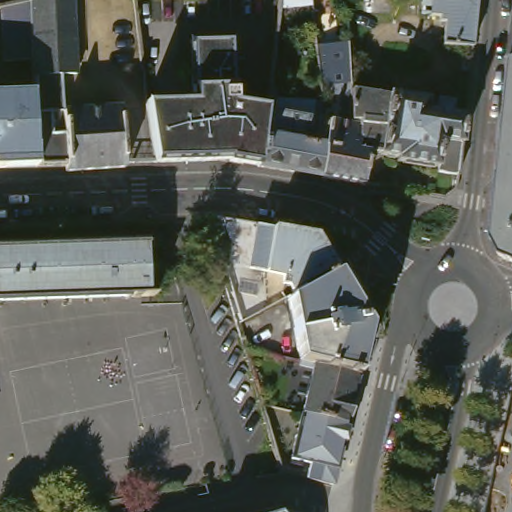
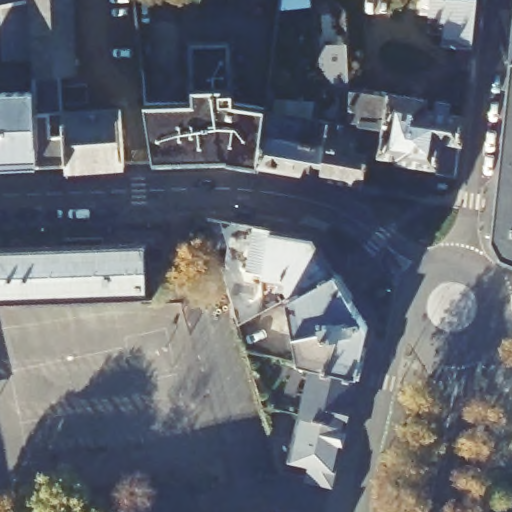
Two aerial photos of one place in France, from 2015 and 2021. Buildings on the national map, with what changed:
unchanged [(23,0),(13,2),(0,5),(0,0),(23,0)]
unchanged [(41,52),(16,53),(13,2),(23,0),(39,0),(40,24),(41,52)]
unchanged [(79,70),(80,89),(70,90),(71,108),(129,105),(133,160),(133,164),(105,165),(74,167),(74,161),(46,163),(44,131),(43,95),(42,82),(42,72),(41,62),(41,52),(40,24),(39,0),(81,0),(84,70),(79,70)]
unchanged [(332,0),(336,3),(312,7),(279,10),(281,0),(332,0)]
unchanged [(376,7),(377,0),(405,0),(404,8),(376,7)]
unchanged [(454,17),(454,12),(447,11),(444,11),(444,9),(436,10),(436,15),(417,13),(418,0),(492,0),(487,42),(457,40),(459,18),(454,17)]
unchanged [(512,41),(512,60),(510,60),(512,41)]
unchanged [(460,139),(469,140),(467,174),(415,168),(419,156),(378,148),(374,177),(264,162),(160,158),(157,105),(201,102),(202,89),(202,44),(240,42),(239,81),(241,99),(269,101),(312,109),(358,118),(360,86),(467,99),(460,139)]
unchanged [(311,46),(353,43),(360,86),(358,118),(312,109),(311,46)]
unchanged [(512,60),(512,120),(504,118),(510,60),(512,60)]
unchanged [(12,96),(43,95),(44,131),(46,163),(46,170),(1,173),(0,173),(0,97),(12,96)]
unchanged [(512,263),(498,257),(490,238),(504,118),(512,120),(512,263)]
unchanged [(274,217),(328,231),(378,316),(370,370),(344,463),(298,455),(316,367),(282,358),(276,309),(252,309),(223,218),(274,217)]
unchanged [(155,240),(157,293),(0,298),(0,245),(155,240)]
unchanged [(282,508),(283,512),(270,512),(282,508)]

